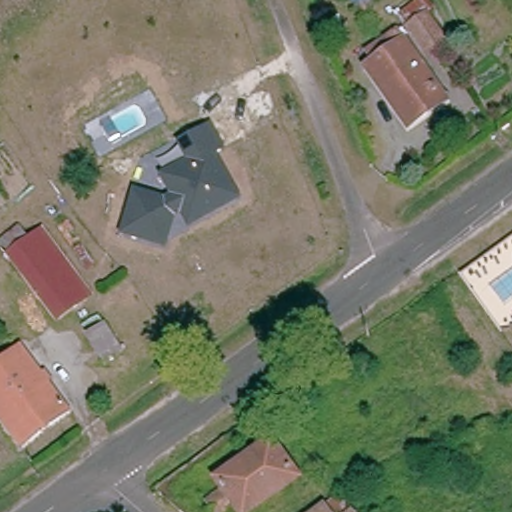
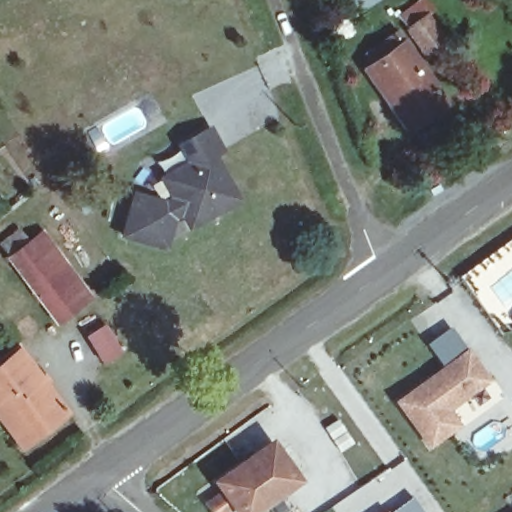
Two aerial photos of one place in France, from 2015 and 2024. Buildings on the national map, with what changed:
unchanged [(434,57),(420,66),(432,83),(442,77),(453,93),(443,100),(447,105),(405,134),(360,64),(369,59),(356,42),(417,0),(423,0),(454,43),(434,57)]
unchanged [(363,0),(378,0),(368,7),(363,0)]
unchanged [(235,198),(235,199),(187,226),(179,213),(171,217),(163,247),(121,236),(132,194),(162,203),(171,198),(159,178),(186,163),(176,145),(206,128),(218,150),(210,155),(235,198)]
unchanged [(83,294),(86,297),(78,303),(58,319),(10,256),(0,243),(15,231),(25,245),(39,235),(83,294)]
unchanged [(94,332),(105,325),(121,351),(109,359),(104,362),(88,336),(94,332)]
new [(466,347),(469,346),(493,379),(451,408),(463,424),(430,448),(394,400),(443,363),(427,342),(451,326),(466,347)]
unchanged [(70,412),(25,447),(0,415),(0,366),(21,350),(70,412)]
new [(338,418),(355,443),(341,452),(325,426),(338,418)]
demolished [(493,434),(509,457),(479,478),(463,455),(493,434)]
unchanged [(230,493),(226,488),(284,447),(307,482),(262,512),(244,512),(242,508),(236,512),(214,512),(211,507),(230,493)]
new [(414,495),(425,512),(384,512),(387,510),(414,495)]
demolished [(349,496),(360,512),(328,512),(349,496)]

